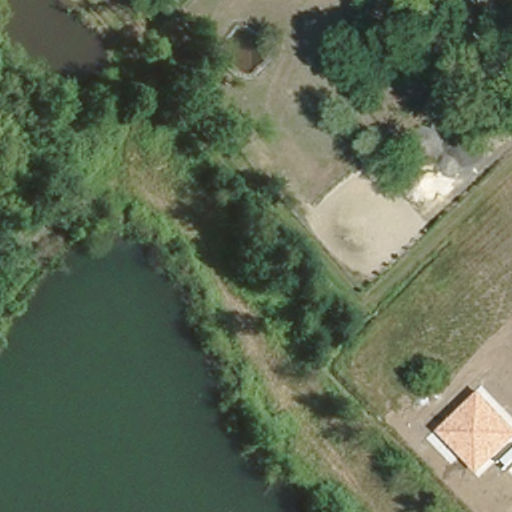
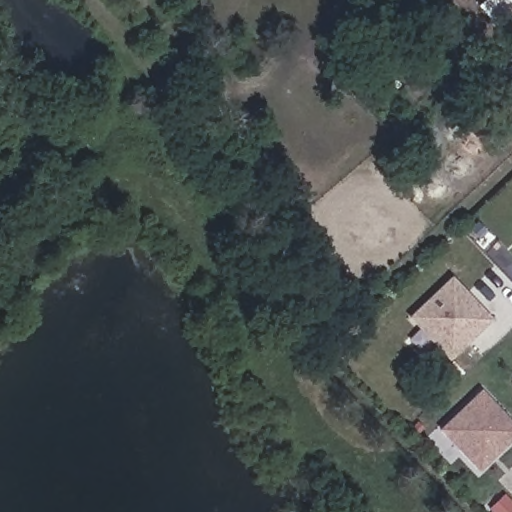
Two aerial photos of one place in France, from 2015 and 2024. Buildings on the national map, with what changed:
unchanged [(390,24),(350,64),(331,40),(367,3),(390,24)]
new [(411,321),(452,282),(492,322),(451,362),(411,321)]
unchanged [(480,472),(442,431),(483,392),(512,423),(512,440),(480,472)]
new [(509,512),(493,512),(490,508),(503,495),(512,504),(512,509),(509,512)]

